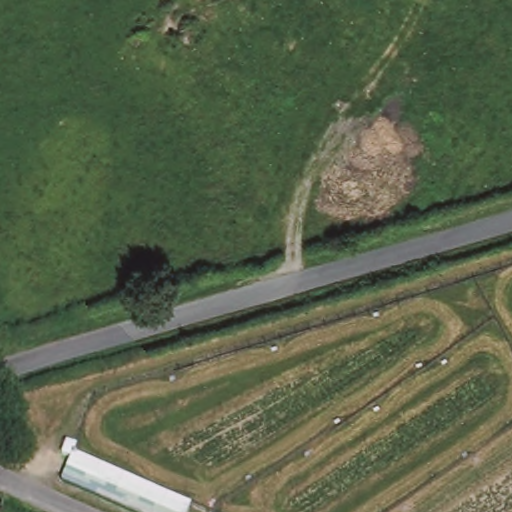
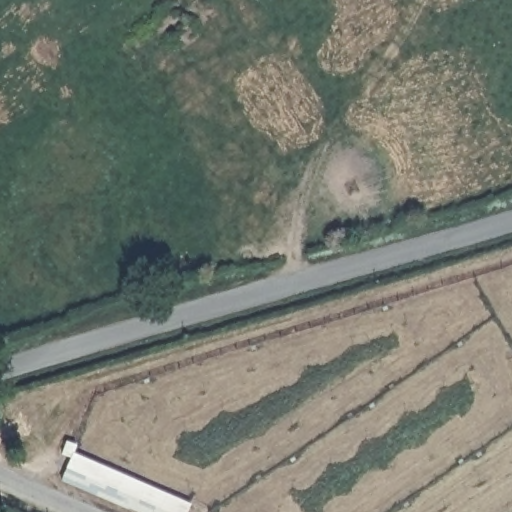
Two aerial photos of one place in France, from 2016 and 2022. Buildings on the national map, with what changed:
unchanged [(191,512),(126,512),(58,482),(73,449),(194,505),(191,512)]

